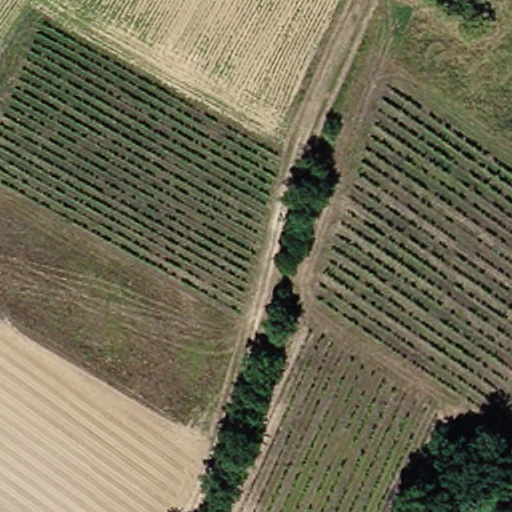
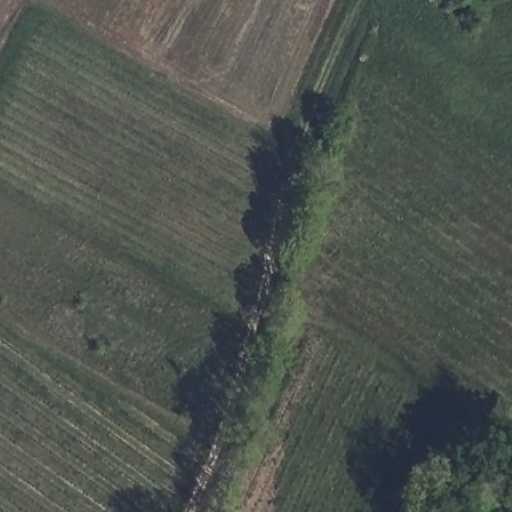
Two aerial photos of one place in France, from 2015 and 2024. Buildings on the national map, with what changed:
[]

